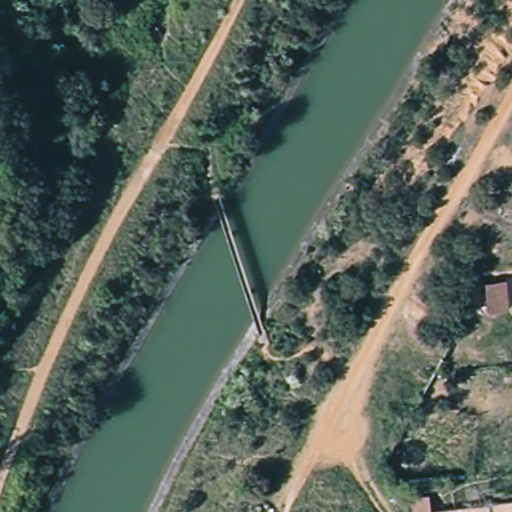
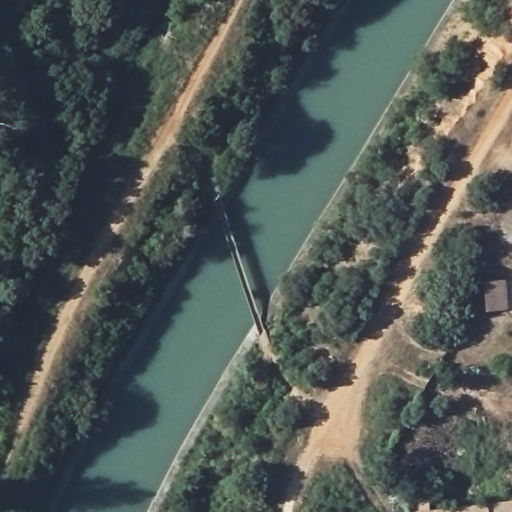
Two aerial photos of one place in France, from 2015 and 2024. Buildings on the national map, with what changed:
unchanged [(485,281),(507,281),(511,310),(490,313),(485,281)]
unchanged [(410,497),(427,495),(430,512),(487,504),(512,501),(512,512),(412,512),(410,497)]

